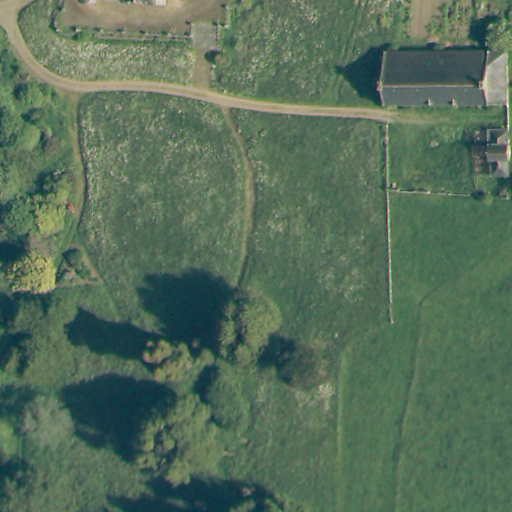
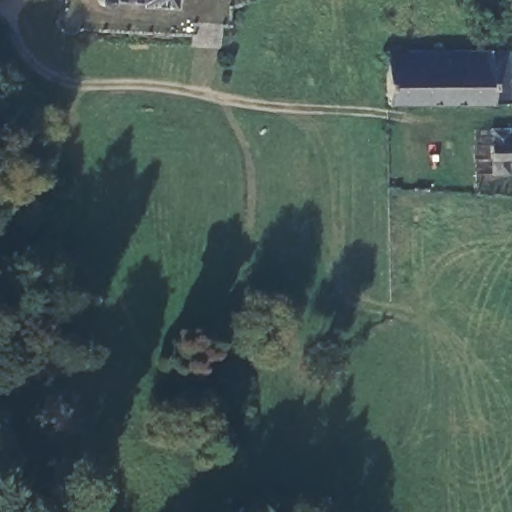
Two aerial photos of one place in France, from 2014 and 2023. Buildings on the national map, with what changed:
unchanged [(102,0),(108,0),(104,2),(102,0)]
unchanged [(141,6),(141,1),(125,0),(174,0),(173,7),(141,6)]
unchanged [(386,55),(512,51),(512,106),(385,110),(386,55)]
unchanged [(504,176),(499,176),(499,159),(504,159),(504,148),(512,148),(512,190),(504,190),(504,176)]

